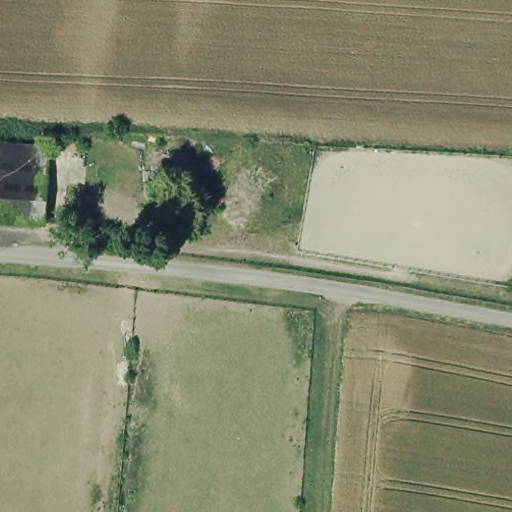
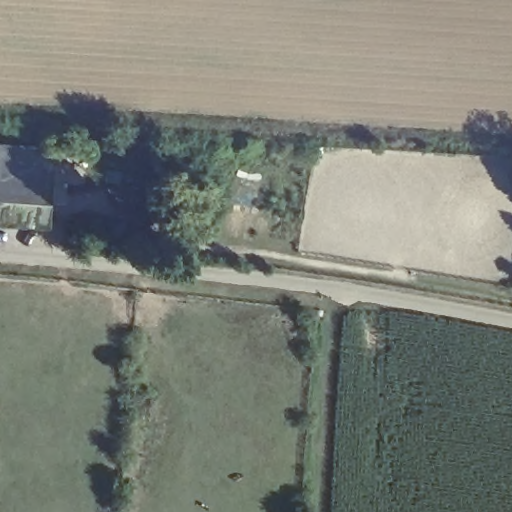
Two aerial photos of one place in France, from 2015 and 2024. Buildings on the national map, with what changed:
unchanged [(45,225),(0,223),(0,144),(51,148),(45,225)]

